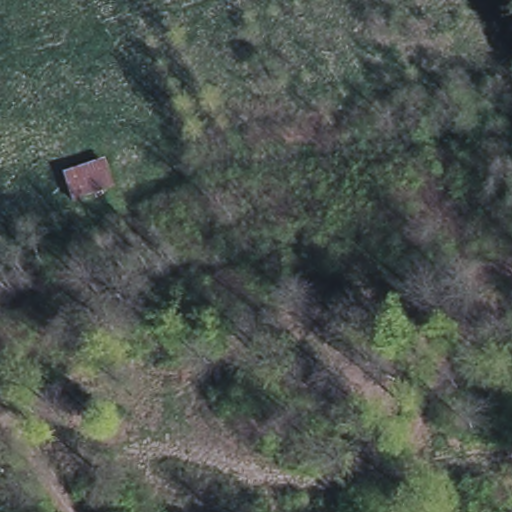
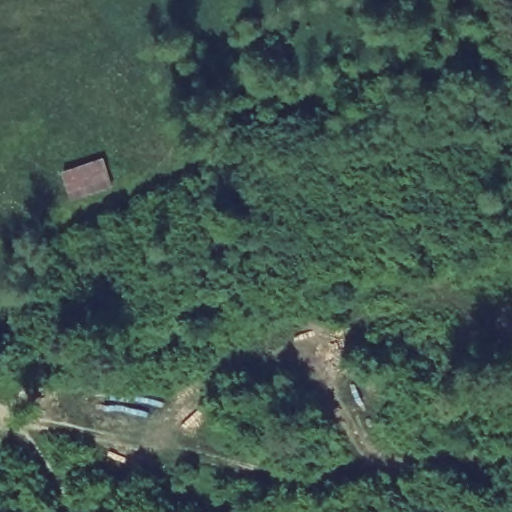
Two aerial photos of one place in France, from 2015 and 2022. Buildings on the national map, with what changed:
unchanged [(106,157),(114,190),(69,204),(59,171),(106,157)]

